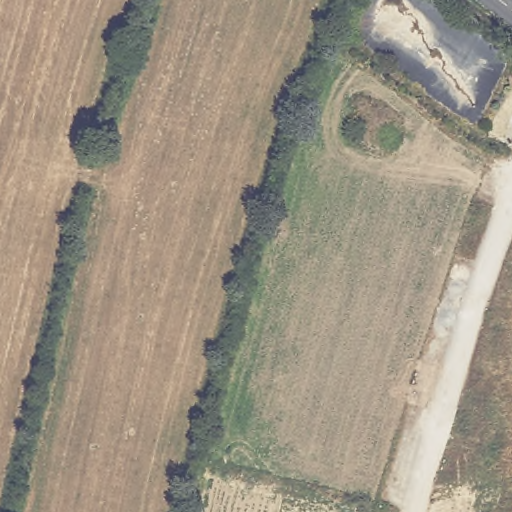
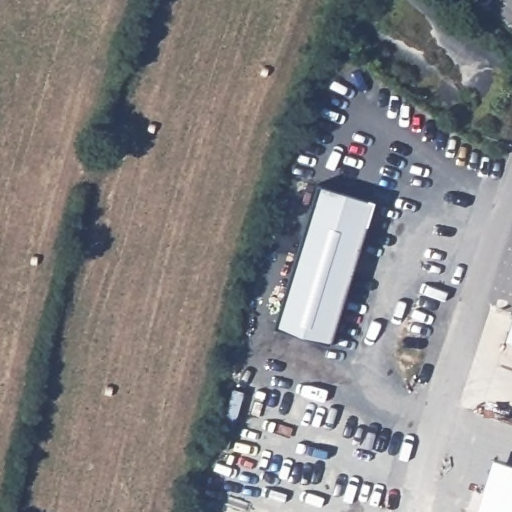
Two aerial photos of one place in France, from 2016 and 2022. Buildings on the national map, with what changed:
new [(323,184),(380,203),(333,346),(276,327),(323,184)]
unchanged [(512,342),(505,339),(512,321),(512,342)]

